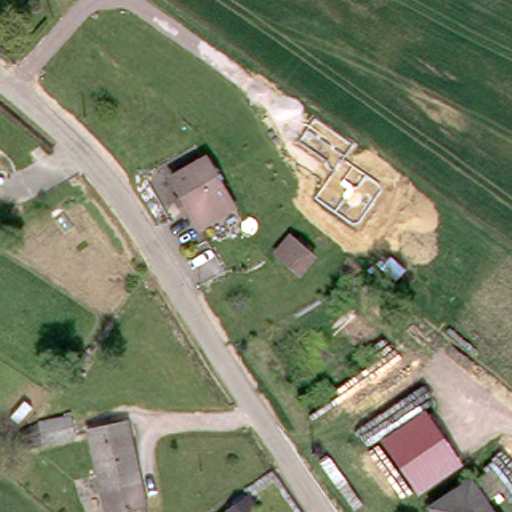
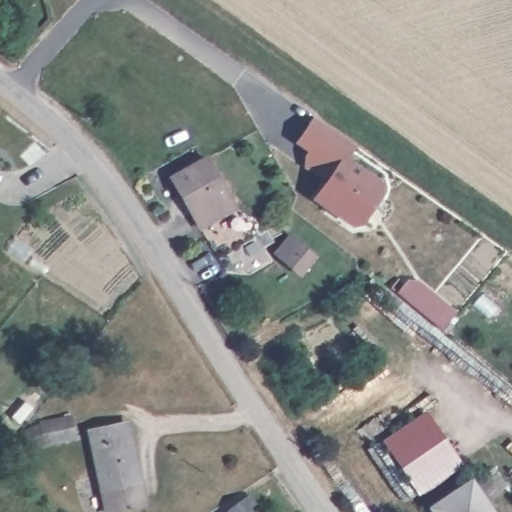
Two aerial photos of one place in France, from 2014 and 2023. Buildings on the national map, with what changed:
new [(386,184),(362,224),(350,228),(312,200),(324,182),(300,163),(307,153),(294,143),(313,117),(355,147),(350,158),(386,184)]
unchanged [(169,199),(177,194),(169,179),(174,176),(206,158),(233,206),(218,215),(197,227),(185,206),(177,212),(169,199)]
unchanged [(270,254),(285,234),(310,252),(295,272),(270,254)]
new [(457,312),(442,329),(399,293),(408,278),(419,279),(457,312)]
unchanged [(462,464),(417,492),(379,440),(424,409),(462,464)]
unchanged [(78,438),(48,445),(43,428),(73,420),(78,438)]
unchanged [(152,504),(122,512),(114,512),(93,432),(112,427),(130,423),(137,452),(152,504)]
unchanged [(435,503),(470,476),(497,512),(443,512),(435,503)]
unchanged [(248,495),(255,503),(251,512),(224,512),(248,495)]

